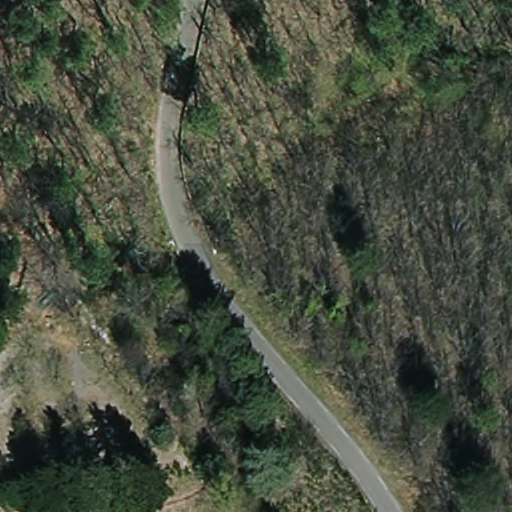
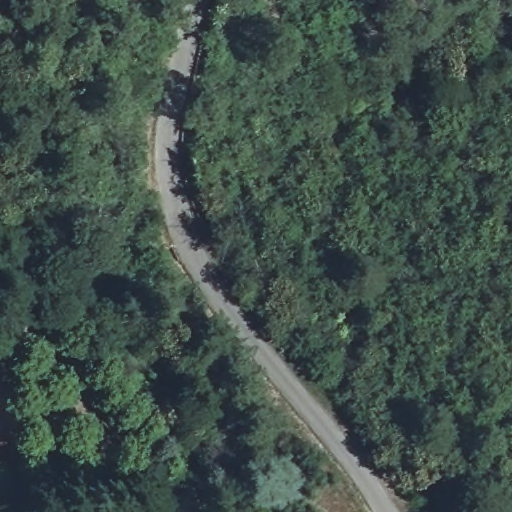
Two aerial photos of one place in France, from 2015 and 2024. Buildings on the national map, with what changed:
[]

